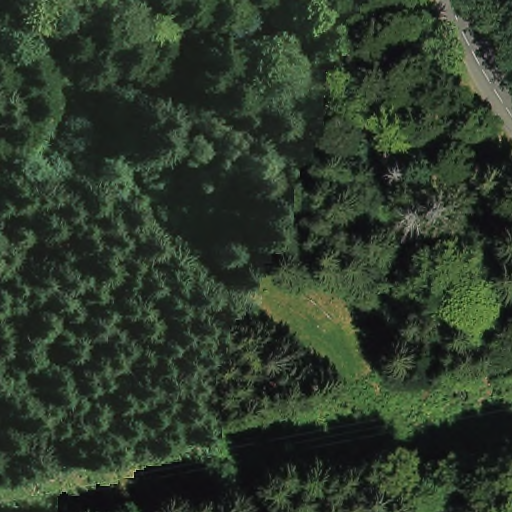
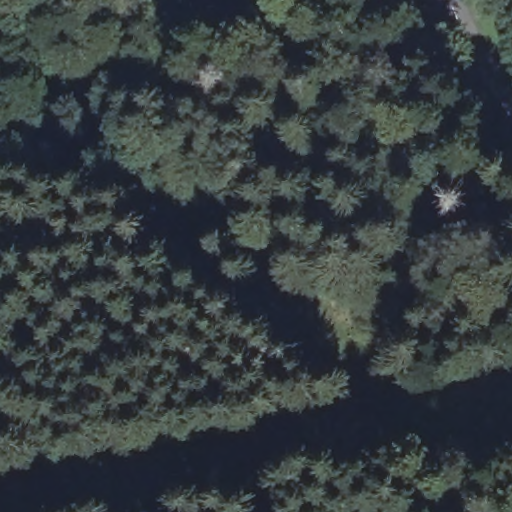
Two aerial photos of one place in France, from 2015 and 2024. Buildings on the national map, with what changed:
unchanged [(467,75),(476,56),(490,63),(482,82),(467,75)]

